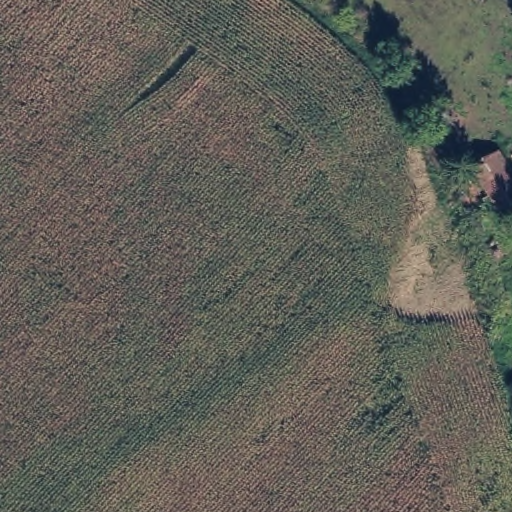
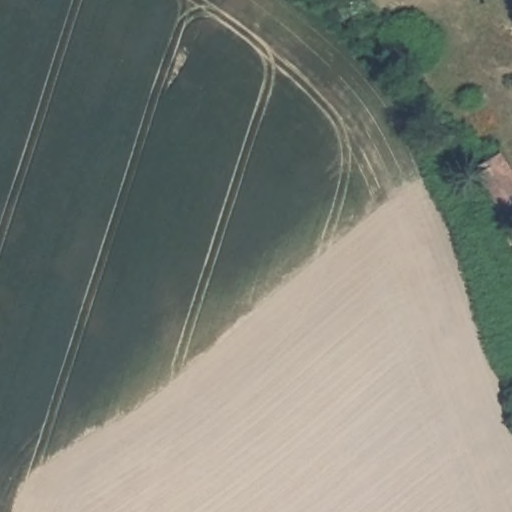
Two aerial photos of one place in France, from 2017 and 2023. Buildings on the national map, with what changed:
unchanged [(504,151),(512,163),(512,205),(504,209),(495,196),(478,205),(465,181),(481,173),(476,165),(504,151)]

